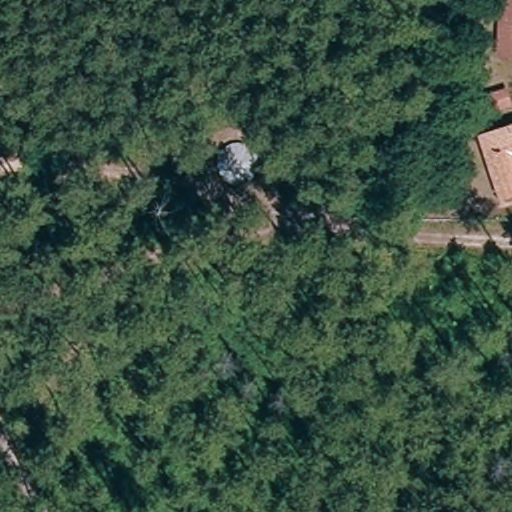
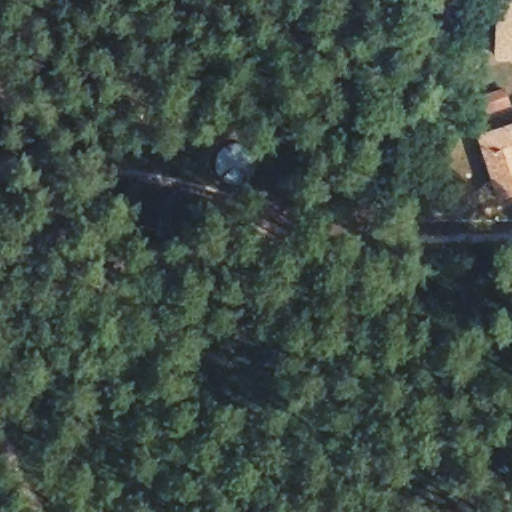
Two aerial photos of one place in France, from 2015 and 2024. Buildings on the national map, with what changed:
unchanged [(500,59),(501,29),(502,0),(512,0),(512,59),(500,59)]
unchanged [(484,102),(506,95),(510,110),(489,117),(484,102)]
unchanged [(506,196),(502,185),(487,139),(512,131),(512,193),(506,196)]

